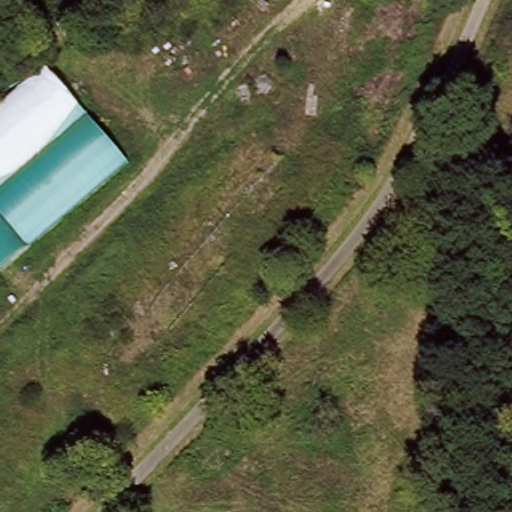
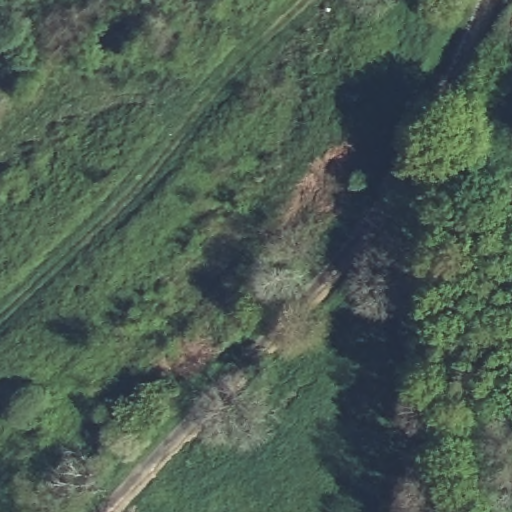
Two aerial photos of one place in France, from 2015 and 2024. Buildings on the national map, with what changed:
demolished [(0,105),(44,66),(128,163),(0,275),(0,105)]

